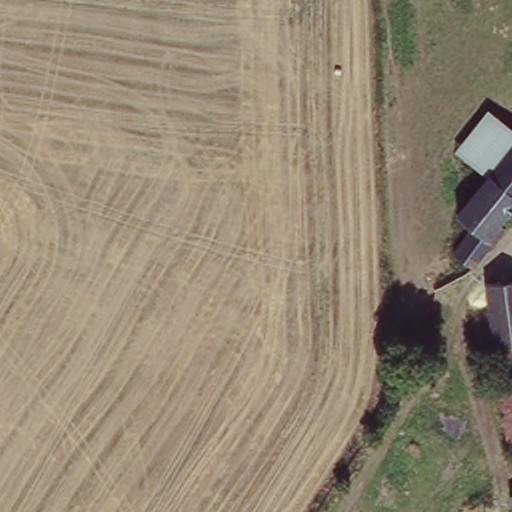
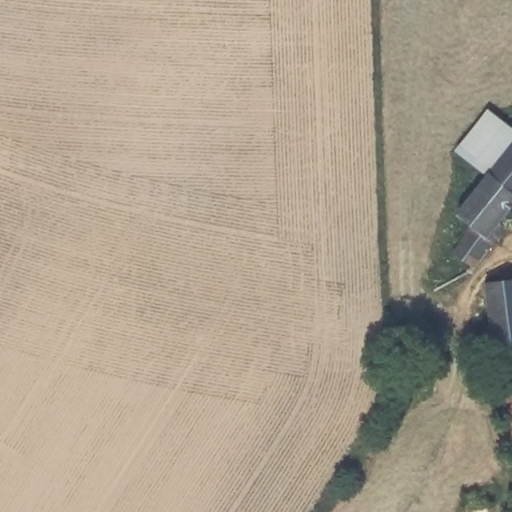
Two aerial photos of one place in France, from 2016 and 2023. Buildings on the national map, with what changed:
unchanged [(451,255),(471,230),(450,213),(484,170),(455,147),(488,105),(512,124),(512,215),(469,269),(451,255)]
unchanged [(512,280),(512,348),(496,350),(490,281),(512,280)]
unchanged [(512,454),(504,455),(496,350),(512,348),(512,454)]

